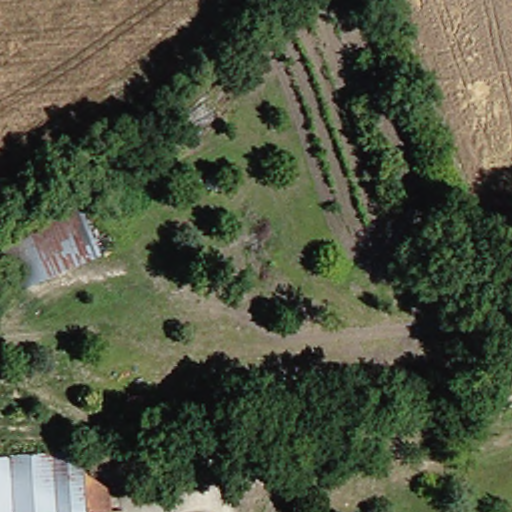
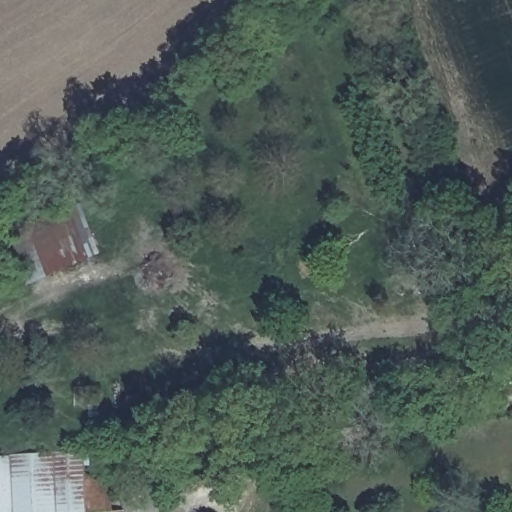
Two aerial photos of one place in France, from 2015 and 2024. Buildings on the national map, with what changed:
unchanged [(10,296),(0,276),(0,256),(91,212),(112,253),(10,296)]
unchanged [(114,485),(122,487),(120,496),(117,495),(118,510),(100,511),(86,512),(0,512),(0,456),(89,450),(90,457),(95,456),(95,465),(90,465),(90,472),(97,476),(103,480),(114,485)]

